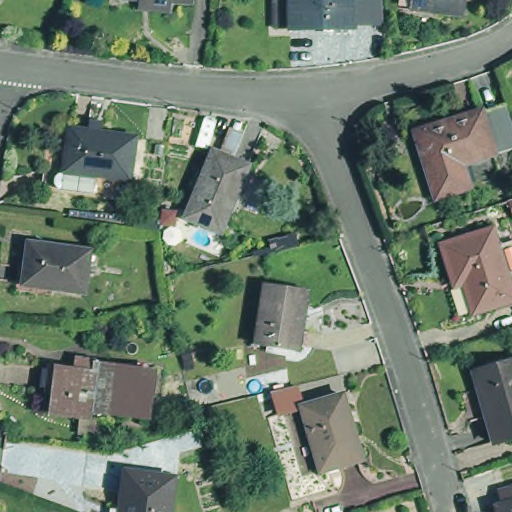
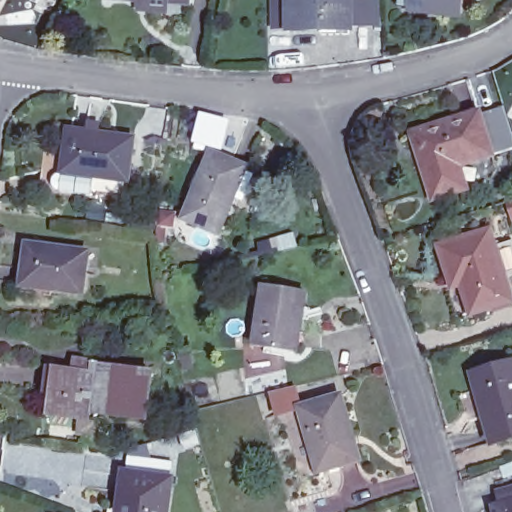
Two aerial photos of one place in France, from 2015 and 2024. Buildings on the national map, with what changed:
unchanged [(354,36),(296,32),(281,32),(282,0),(356,0),(354,36)]
unchanged [(367,17),(366,0),(381,0),(382,17),(367,17)]
unchanged [(454,0),(459,1),(456,23),(413,16),(415,0),(454,0)]
unchanged [(484,118),(506,111),(512,127),(512,153),(497,158),(484,118)]
unchanged [(484,118),(497,158),(457,172),(466,196),(472,194),(473,198),(437,210),(423,165),(414,139),(423,136),(483,116),(484,118)]
unchanged [(77,121),(141,129),(136,170),(131,170),(71,163),(74,142),(77,121)]
unchanged [(71,163),(131,170),(128,191),(48,181),(53,139),(74,142),(71,163)]
unchanged [(186,217),(214,151),(248,166),(220,233),(186,217)]
unchanged [(452,279),(443,247),(494,233),(499,251),(512,247),(512,279),(508,281),(512,297),(512,303),(471,315),(462,284),(454,286),(452,279)]
unchanged [(29,249),(86,257),(80,297),(23,289),(29,249)]
unchanged [(265,286),(306,296),(293,355),(251,345),(265,286)]
unchanged [(58,370),(98,376),(100,366),(158,376),(151,421),(89,412),(88,421),(52,416),(58,370)]
unchanged [(468,400),(484,395),(479,379),(512,369),(512,443),(499,447),(492,422),(477,427),(468,400)]
unchanged [(343,397),(361,462),(321,473),(302,409),(343,397)]
unchanged [(169,491),(165,512),(117,512),(123,482),(169,491)]
unchanged [(512,504),(512,512),(493,512),(492,509),(512,504)]

